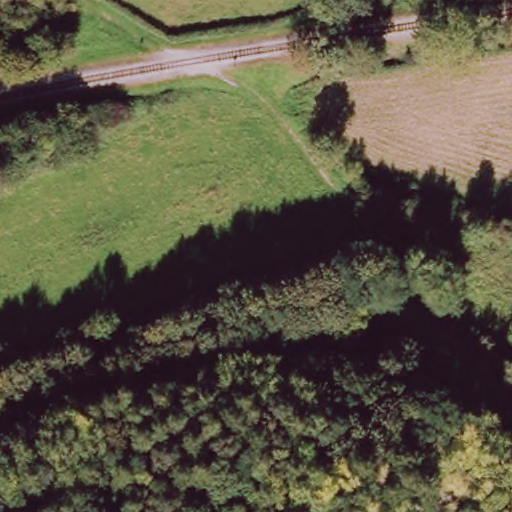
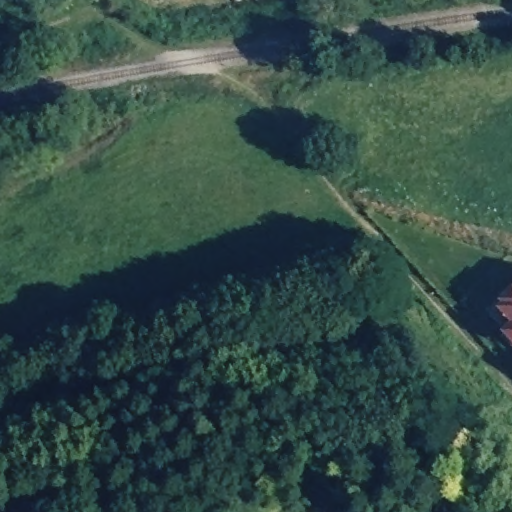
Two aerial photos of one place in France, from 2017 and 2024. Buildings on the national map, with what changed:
unchanged [(59,5),(52,0),(63,0),(59,5)]
new [(505,331),(491,313),(497,312),(494,309),(502,302),(499,299),(512,286),(512,344),(503,334),(505,331)]
new [(512,321),(504,311),(512,306),(512,321)]

